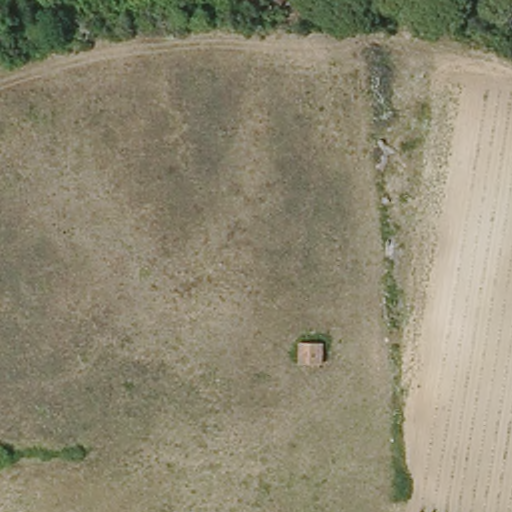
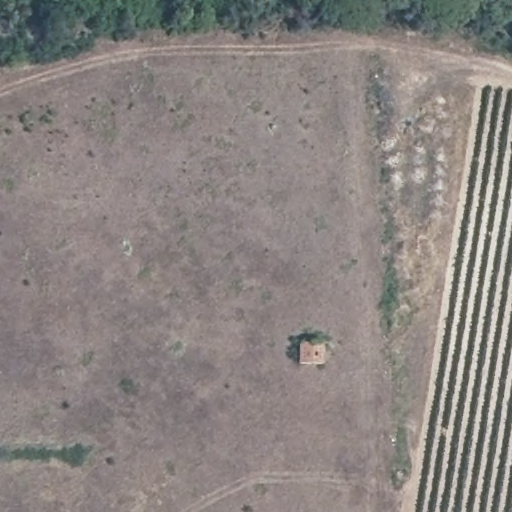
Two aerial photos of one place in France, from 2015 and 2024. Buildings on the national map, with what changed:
unchanged [(327,363),(307,362),(306,343),(327,343),(327,363)]

